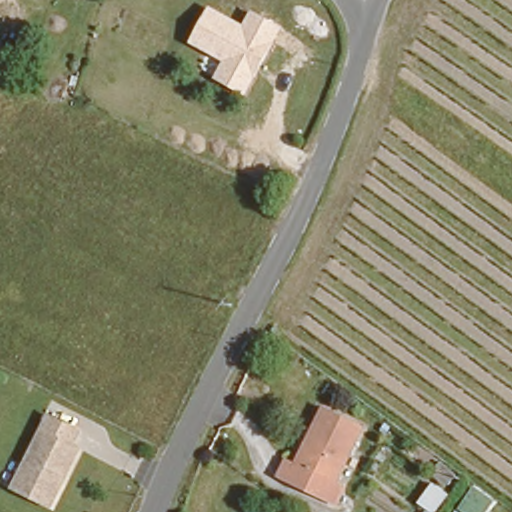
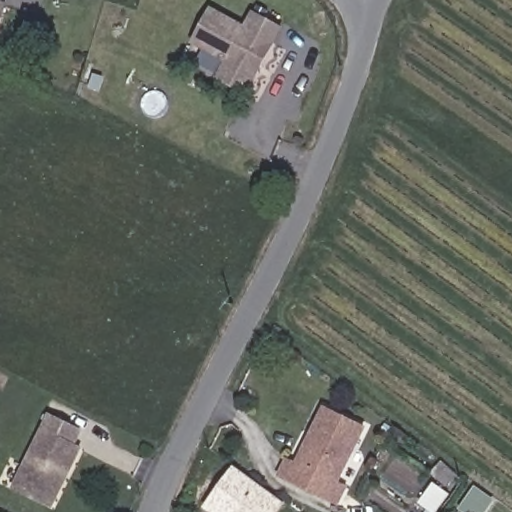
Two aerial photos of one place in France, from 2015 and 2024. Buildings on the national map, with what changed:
new [(0,3),(7,6),(0,24),(0,3)]
unchanged [(246,97),(214,79),(224,62),(190,42),(212,5),(245,24),(252,10),(285,26),(246,97)]
unchanged [(322,501),(306,489),(277,470),(287,454),(291,456),(326,405),(363,430),(324,488),(329,491),(322,501)]
unchanged [(59,472),(55,480),(58,482),(47,505),(9,485),(45,411),(76,427),(69,443),(76,447),(62,474),(59,472)]
new [(285,503),(278,512),(207,512),(202,508),(234,465),(285,503)]

